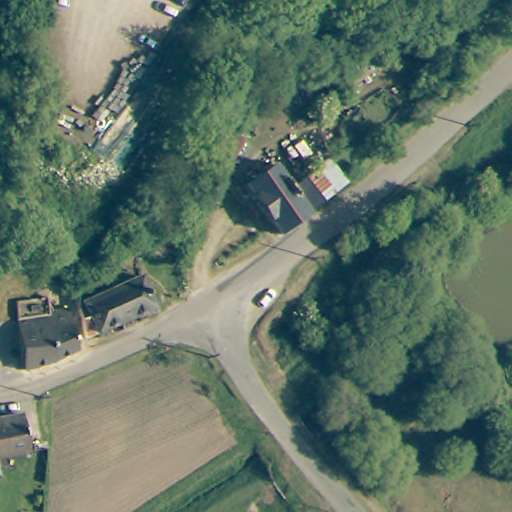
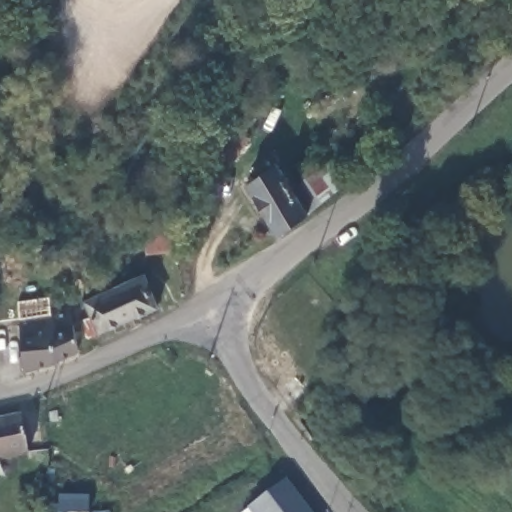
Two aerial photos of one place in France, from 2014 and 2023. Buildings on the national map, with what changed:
unchanged [(328,76),(372,43),(388,63),(342,101),(328,76)]
unchanged [(246,187),(277,165),(293,188),(330,162),(332,159),(347,180),(350,183),(282,238),(246,187)]
unchanged [(85,332),(83,315),(82,307),(143,283),(156,314),(87,344),(85,332)]
unchanged [(21,317),(20,309),(50,302),(53,316),(72,312),(82,351),(54,372),(30,377),(21,317)]
unchanged [(31,451),(0,457),(0,420),(24,415),(31,451)]
new [(290,483),(312,512),(257,512),(255,510),(290,483)]

